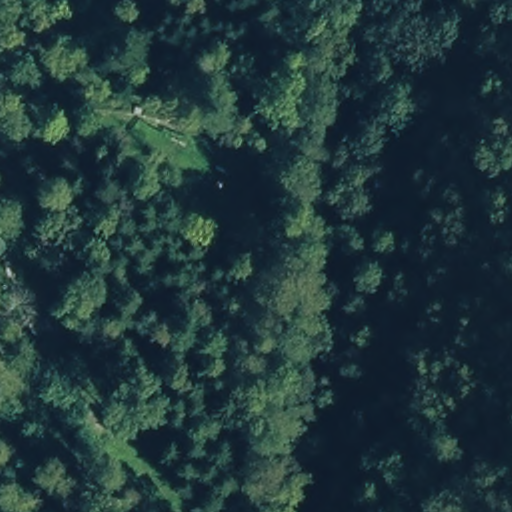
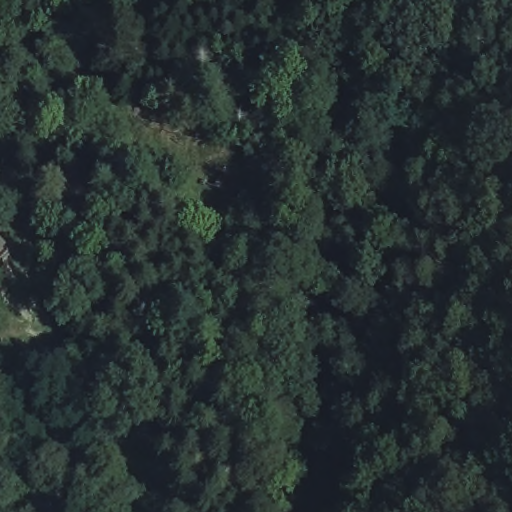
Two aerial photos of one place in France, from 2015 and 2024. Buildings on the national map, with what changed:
unchanged [(8,254),(0,262),(0,246),(8,254)]

